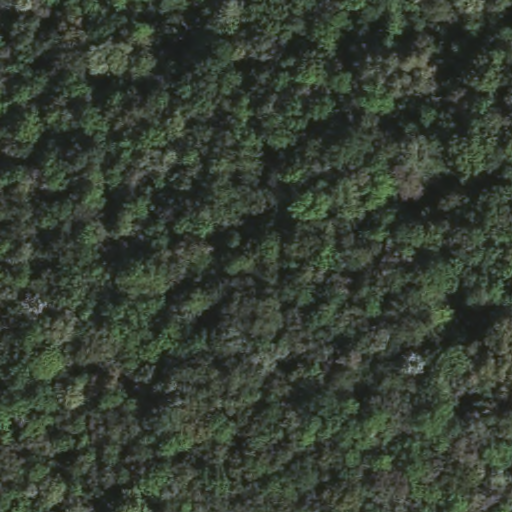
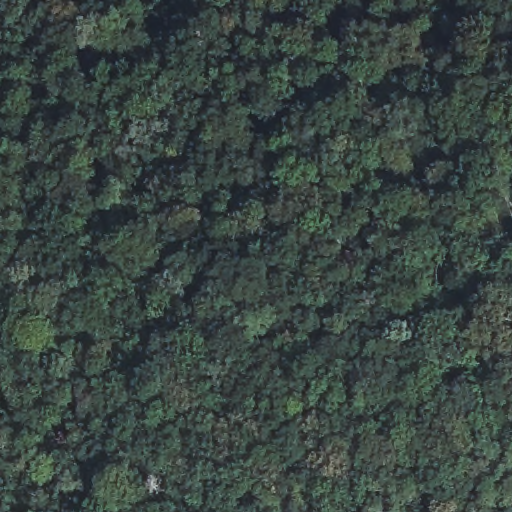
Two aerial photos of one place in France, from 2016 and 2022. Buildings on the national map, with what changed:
[]

